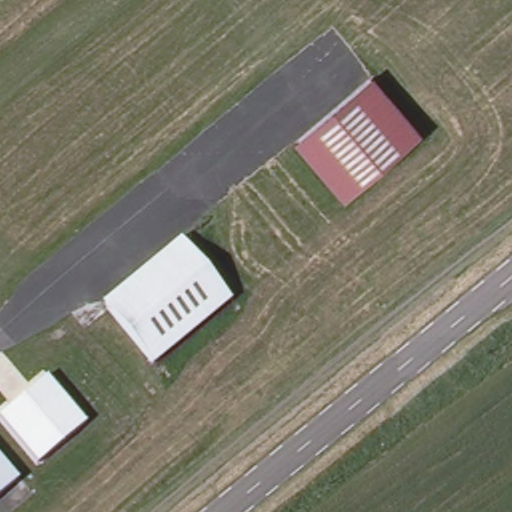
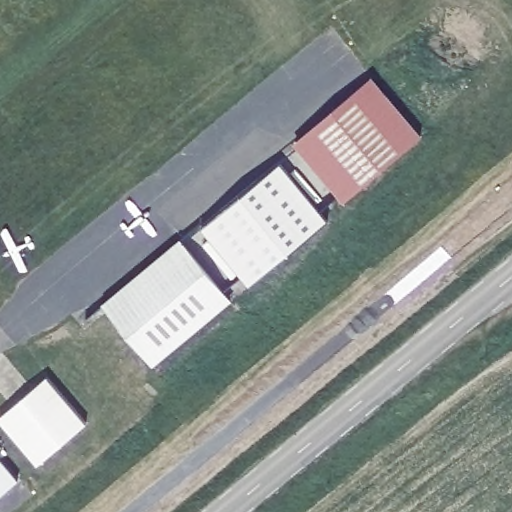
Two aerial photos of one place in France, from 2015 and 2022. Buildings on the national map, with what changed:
unchanged [(375,77),(423,137),(345,199),(298,140),(375,77)]
new [(325,223),(248,289),(202,232),(277,166),(325,223)]
unchanged [(231,296),(152,362),(103,302),(181,239),(231,296)]
unchanged [(87,423),(35,466),(0,425),(0,417),(48,374),(87,423)]
unchanged [(0,499),(0,458),(20,482),(0,499)]

